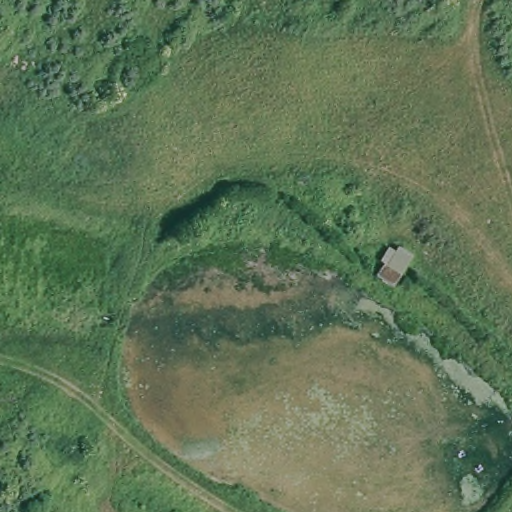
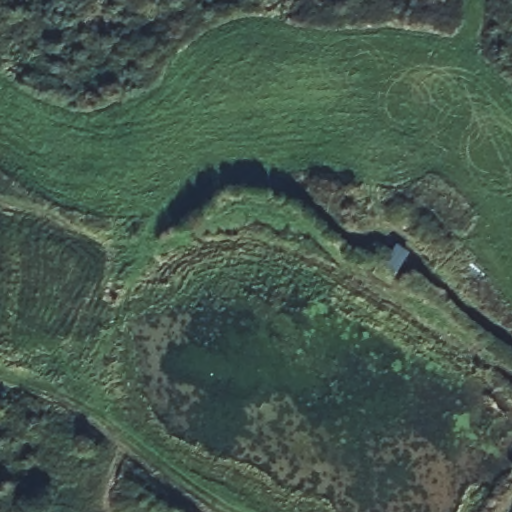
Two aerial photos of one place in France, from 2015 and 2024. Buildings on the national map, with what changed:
unchanged [(387,280),(370,272),(385,240),(404,250),(387,280)]

